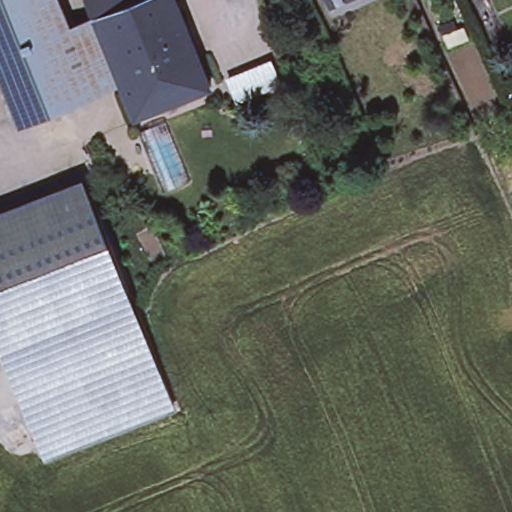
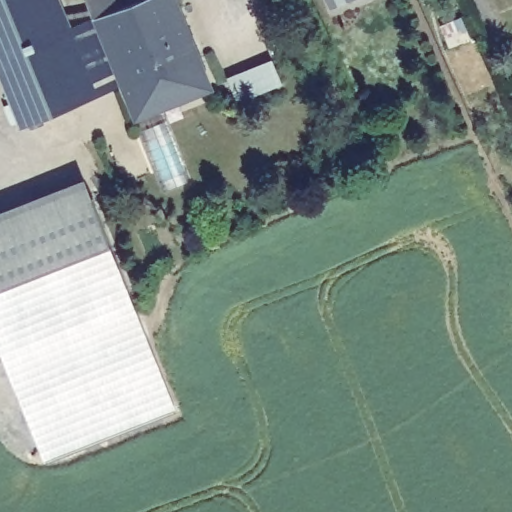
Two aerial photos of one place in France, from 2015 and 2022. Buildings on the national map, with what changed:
unchanged [(37,0),(51,36),(77,102),(50,114),(22,125),(0,71),(0,0),(37,0)]
unchanged [(135,0),(136,2),(95,17),(88,0),(135,0)]
unchanged [(122,85),(95,17),(136,2),(140,0),(173,0),(195,56),(122,85)]
unchanged [(140,0),(136,2),(135,0),(140,0)]
unchanged [(325,0),(350,0),(328,9),(325,0)]
unchanged [(122,85),(77,102),(51,36),(95,17),(122,85)]
unchanged [(195,56),(208,88),(135,117),(122,85),(195,56)]
unchanged [(125,286),(0,335),(0,220),(87,186),(125,286)]
unchanged [(125,286),(174,409),(44,462),(0,351),(0,335),(125,286)]

